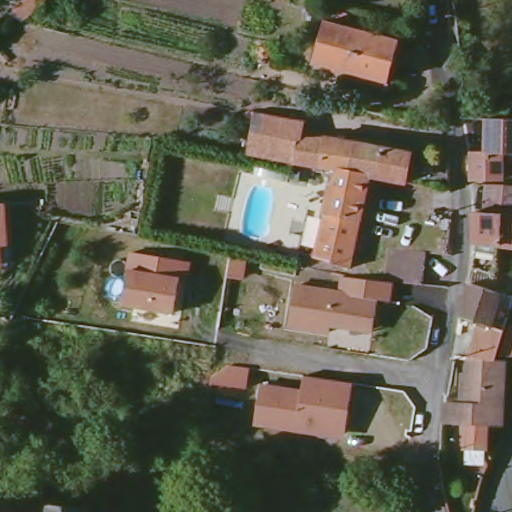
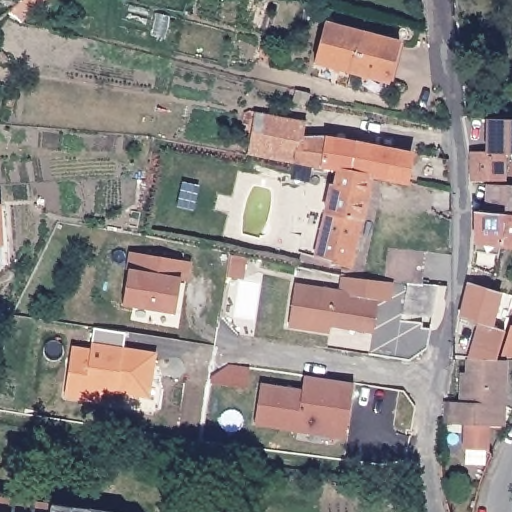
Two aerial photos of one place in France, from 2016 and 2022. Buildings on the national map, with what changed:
unchanged [(314,66),(325,27),(360,36),(349,76),(314,66)]
unchanged [(385,86),(349,76),(360,36),(396,46),(394,50),(386,82),(385,86)]
unchanged [(404,179),(370,173),(334,166),(246,149),(254,107),(306,118),(302,135),(327,135),(409,151),(404,179)]
unchanged [(512,117),(512,151),(488,151),(489,116),(512,117)]
unchanged [(471,153),(471,151),(488,151),(512,151),(512,177),(503,177),(472,176),(471,153)]
unchanged [(349,266),(311,257),(334,166),(370,173),(349,266)]
unchanged [(504,211),(474,210),(473,195),(488,195),(489,183),(512,183),(512,244),(503,243),(504,211)]
unchanged [(497,273),(473,265),(476,234),(474,210),(504,211),(503,243),(497,273)]
unchanged [(386,282),(389,254),(427,258),(424,286),(386,282)]
unchanged [(188,265),(185,284),(179,283),(173,316),(121,307),(131,255),(188,265)]
unchanged [(390,302),(376,300),(372,334),(329,327),(328,334),(287,327),(294,280),(338,287),(339,276),(390,283),(390,302)]
unchanged [(468,357),(479,318),(460,312),(473,284),(500,290),(491,320),(506,324),(495,356),(468,357)]
unchanged [(512,320),(512,351),(500,351),(512,320)]
new [(125,335),(123,351),(154,356),(148,398),(113,393),(113,396),(102,394),(100,403),(64,397),(72,350),(90,353),(94,330),(125,335)]
unchanged [(499,416),(487,416),(486,443),(463,442),(463,415),(444,415),(447,396),(460,397),(462,367),(468,367),(468,357),(495,356),(503,356),(499,416)]
new [(211,379),(229,367),(249,370),(246,391),(210,386),(211,379)]
unchanged [(346,436),(253,421),(258,378),(301,386),(303,374),(352,382),(346,436)]
unchanged [(118,511),(119,512),(0,512),(0,495),(118,511)]

